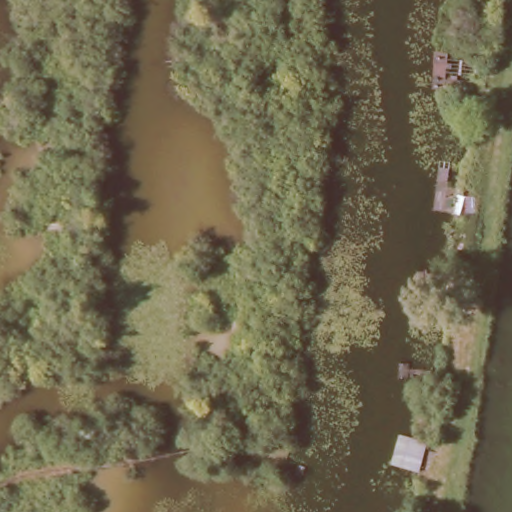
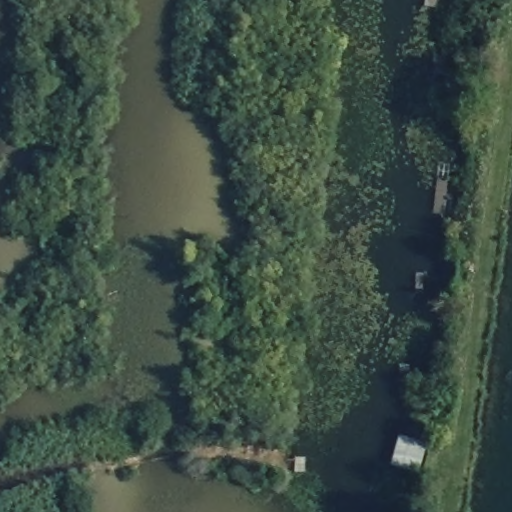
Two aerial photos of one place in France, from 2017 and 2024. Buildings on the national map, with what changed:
unchanged [(422,471),(392,465),(396,435),(428,441),(422,471)]

